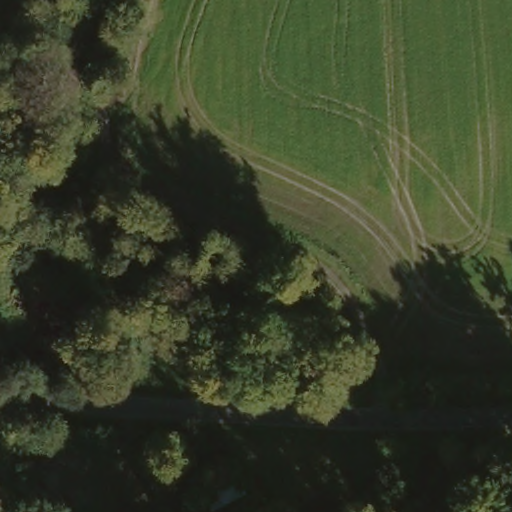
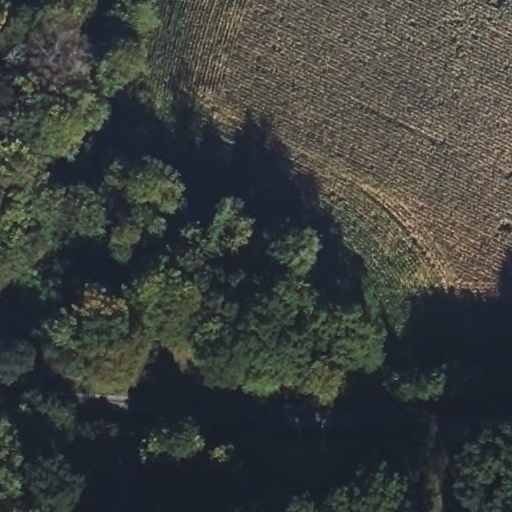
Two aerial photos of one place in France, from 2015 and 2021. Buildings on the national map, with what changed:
unchanged [(261,510),(257,512),(206,512),(196,493),(240,470),(261,510)]

